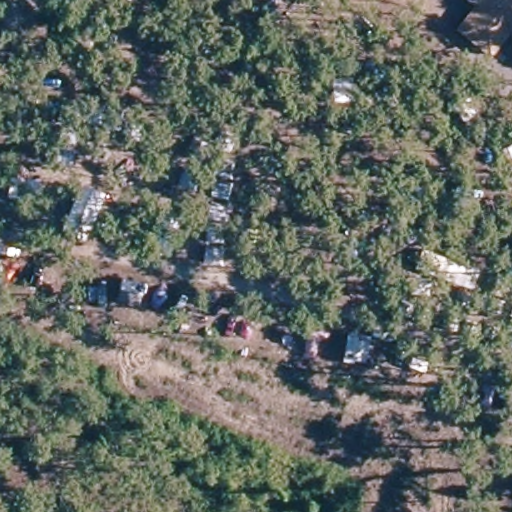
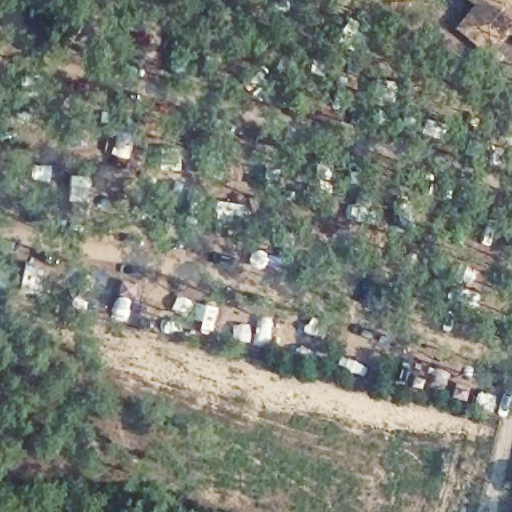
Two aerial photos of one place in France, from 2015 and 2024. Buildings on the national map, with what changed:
unchanged [(490,55),(457,28),(474,7),(465,0),(512,0),(512,34),(490,55)]

